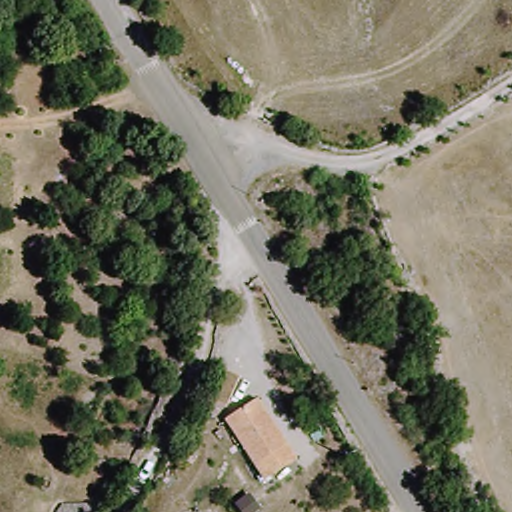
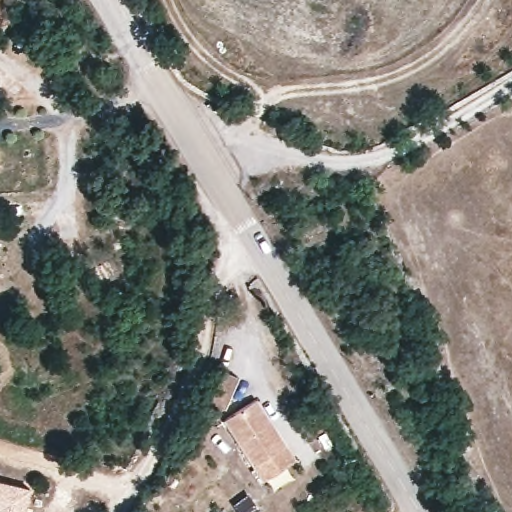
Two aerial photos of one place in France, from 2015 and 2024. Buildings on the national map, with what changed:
unchanged [(219,360),(231,367),(219,390),(208,383),(219,360)]
unchanged [(259,479),(227,414),(245,404),(260,397),(275,427),(294,464),(259,479)]
new [(32,488),(25,512),(0,512),(0,480),(32,488)]

